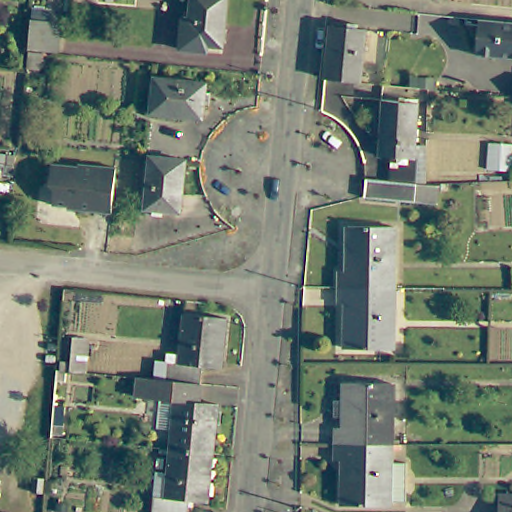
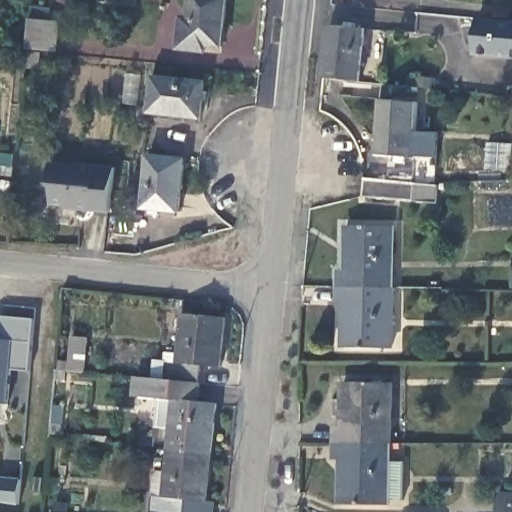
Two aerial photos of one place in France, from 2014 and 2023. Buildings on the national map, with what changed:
unchanged [(190,0),(226,0),(222,46),(186,42),(190,0)]
unchanged [(31,15),(58,17),(55,49),(28,46),(31,15)]
unchanged [(481,18),(512,21),(512,56),(478,53),(481,18)]
unchanged [(332,25),(368,29),(363,81),(327,78),(332,25)]
unchanged [(154,79),(206,84),(203,120),(151,115),(154,79)]
unchanged [(389,165),(395,166),(395,156),(378,155),(383,100),(418,104),(415,146),(425,147),(422,184),(393,181),(387,181),(389,165)]
new [(512,145),(512,172),(491,170),(492,144),(512,145)]
unchanged [(150,156),(186,160),(181,215),(145,212),(150,156)]
unchanged [(113,213),(77,210),(77,207),(54,205),(56,189),(52,184),(53,165),(80,167),(80,165),(117,168),(113,213)]
unchanged [(363,179),(387,181),(393,181),(422,184),(437,183),(435,203),(362,198),(363,179)]
demolished [(18,181),(29,181),(28,201),(17,200),(18,181)]
unchanged [(341,271),(348,272),(349,227),(397,229),(395,288),(340,288),(341,271)]
unchanged [(340,288),(395,288),(394,350),(346,350),(347,304),(340,304),(340,288)]
unchanged [(170,357),(180,358),(185,310),(228,315),(223,363),(205,362),(203,381),(176,379),(168,378),(170,357)]
new [(36,319),(32,371),(13,370),(10,404),(0,403),(0,334),(2,316),(36,319)]
unchanged [(73,340),(89,341),(85,375),(69,373),(73,340)]
unchanged [(175,399),(138,395),(139,375),(168,378),(176,379),(203,381),(201,398),(219,400),(214,449),(170,445),(175,399)]
unchanged [(339,427),(346,428),(346,418),(336,417),(336,400),(346,400),(347,383),(394,383),(393,445),(338,444),(339,427)]
unchanged [(338,444),(393,445),(392,464),(408,464),(406,502),(392,501),(392,505),(344,505),(345,460),(338,460),(338,444)]
unchanged [(165,493),(170,445),(214,449),(209,498),(190,496),(188,512),(152,512),(154,492),(165,493)]
unchanged [(32,478),(43,480),(41,493),(30,492),(32,478)]
unchanged [(512,496),(512,512),(500,512),(501,496),(512,496)]

